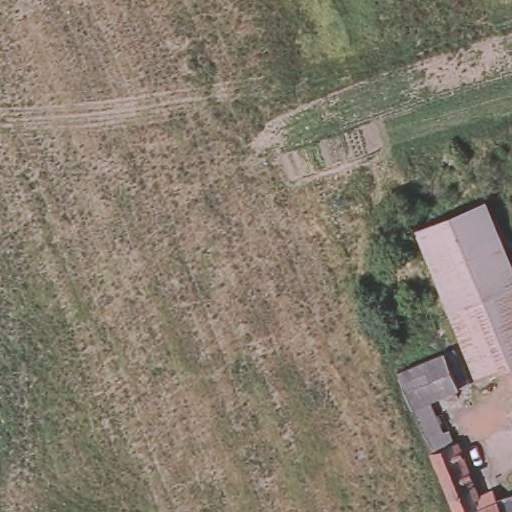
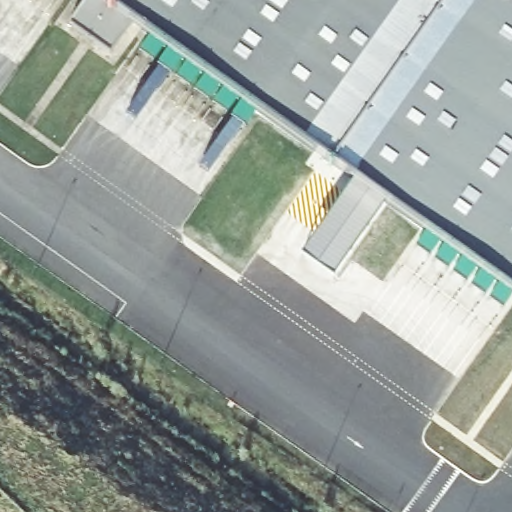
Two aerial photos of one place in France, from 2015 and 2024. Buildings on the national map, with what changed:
new [(85,0),(118,0),(137,12),(111,50),(71,22),(85,0)]
new [(118,0),(512,0),(512,269),(362,165),(118,0)]
new [(396,188),(334,277),(302,255),(365,166),(396,188)]
demolished [(512,248),(512,282),(434,316),(402,240),(491,201),(512,248)]
demolished [(435,353),(451,390),(422,402),(404,410),(389,372),(435,353)]
demolished [(448,445),(470,497),(486,490),(495,512),(447,512),(441,497),(404,410),(422,402),(441,448),(448,445)]
demolished [(512,495),(512,504),(510,495),(512,495)]
demolished [(506,512),(512,510),(512,512),(506,512)]

